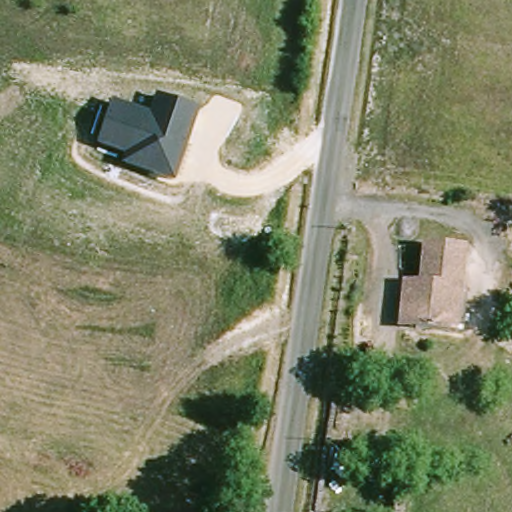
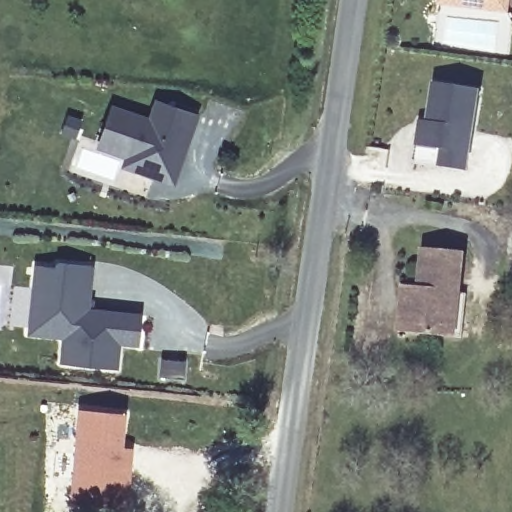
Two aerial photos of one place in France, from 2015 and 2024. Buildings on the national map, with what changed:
new [(437,4),(438,0),(511,0),(509,12),(437,4)]
new [(417,144),(420,130),(422,119),(429,120),(435,81),(479,88),(469,152),(467,170),(440,165),(443,148),(417,144)]
unchanged [(200,114),(175,187),(120,168),(124,158),(97,149),(111,104),(149,117),(155,99),(200,114)]
unchanged [(458,292),(466,293),(461,337),(413,332),(422,247),(463,251),(458,292)]
new [(54,267),(55,262),(89,265),(86,299),(91,299),(90,309),(139,314),(136,343),(116,342),(114,368),(58,363),(61,336),(26,333),(33,265),(54,267)]
new [(126,415),(123,448),(134,449),(133,462),(129,506),(75,501),(82,411),(126,415)]

